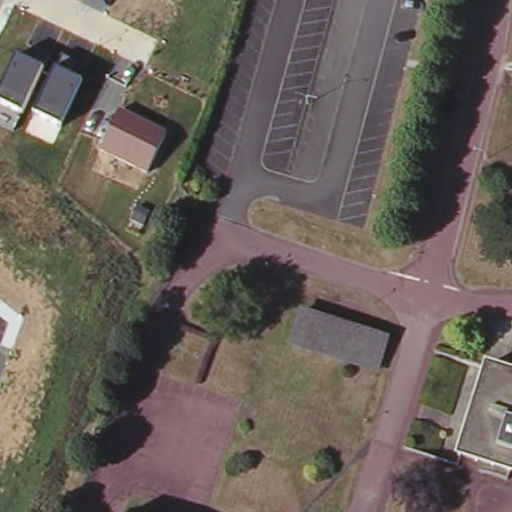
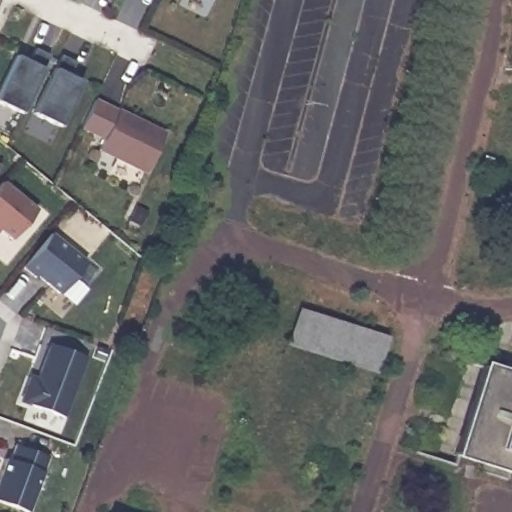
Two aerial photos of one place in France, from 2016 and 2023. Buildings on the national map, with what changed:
new [(210,1),(208,0),(210,0),(210,1)]
unchanged [(0,102),(0,89),(16,55),(44,68),(22,112),(0,102)]
unchanged [(37,117),(57,71),(64,57),(80,65),(73,77),(84,82),(61,127),(37,117)]
unchanged [(121,110),(169,132),(147,175),(100,152),(121,110)]
new [(35,214),(10,244),(0,235),(0,187),(1,186),(35,214)]
new [(84,266),(59,298),(36,280),(34,281),(22,270),(49,238),(84,266)]
unchanged [(377,375),(283,344),(296,306),(386,336),(377,375)]
new [(86,364),(64,425),(22,408),(32,380),(40,383),(52,351),(86,364)]
unchanged [(457,453),(485,363),(512,371),(512,470),(457,453)]
new [(6,465),(11,466),(15,451),(50,465),(31,512),(9,512),(0,508),(0,481),(6,465)]

